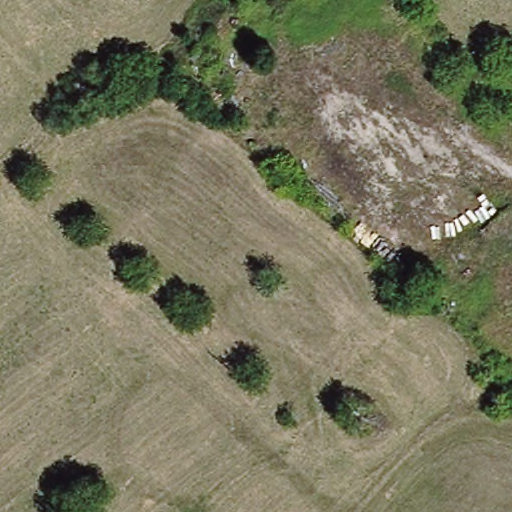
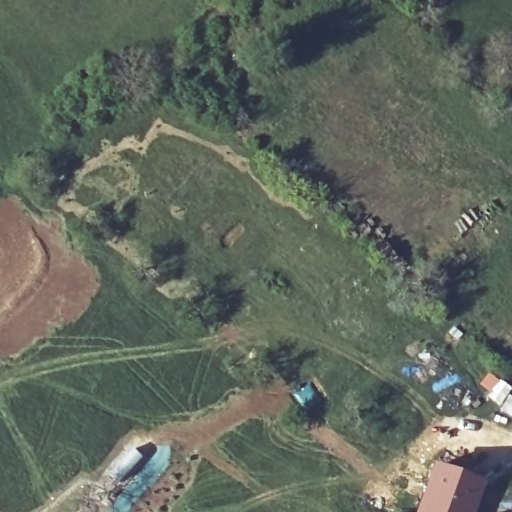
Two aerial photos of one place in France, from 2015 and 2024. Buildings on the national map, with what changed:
new [(422,512),(437,467),(482,481),(471,512),(422,512)]

